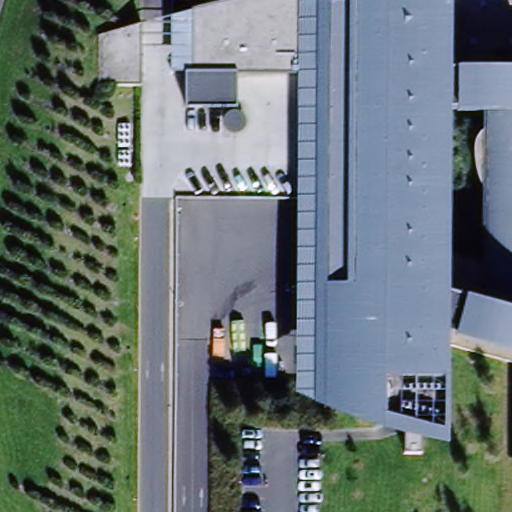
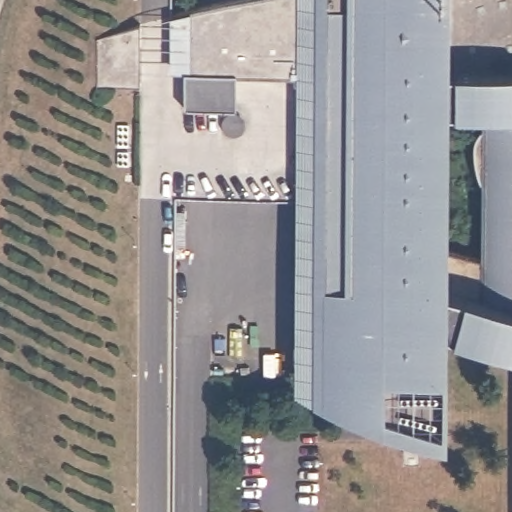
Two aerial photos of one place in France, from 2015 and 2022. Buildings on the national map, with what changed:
unchanged [(387,414),(331,393),(331,174),(263,174),(263,162),(331,162),(331,111),(331,73),(242,73),(242,86),(242,109),(190,109),(190,72),(194,72),(196,72),(196,48),(186,48),(186,38),(196,38),(196,11),(199,11),(244,0),(512,0),(512,360),(455,344),(453,434),(445,432),(426,426),(426,454),(408,454),(409,420),(387,414)]
unchanged [(141,58),(141,87),(97,86),(97,46),(97,37),(141,25),(141,58)]
unchanged [(249,126),(247,128),(246,130),(244,131),(241,133),(239,133),(236,132),(234,131),(232,130),(230,127),(229,125),(229,122),(229,120),(230,117),(232,115),(234,113),(237,113),(239,112),(242,113),(245,114),(247,116),(248,118),(249,120),(249,123),(249,126)]

